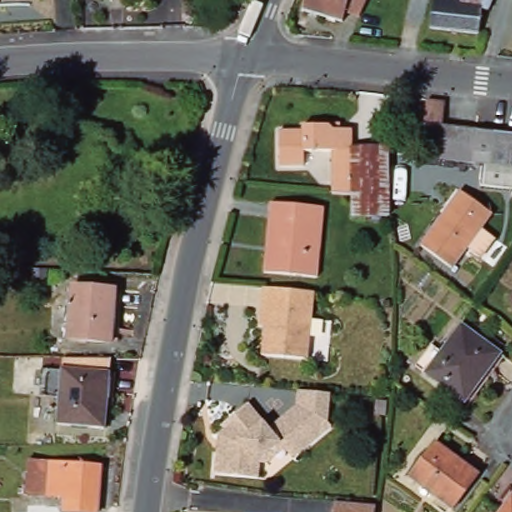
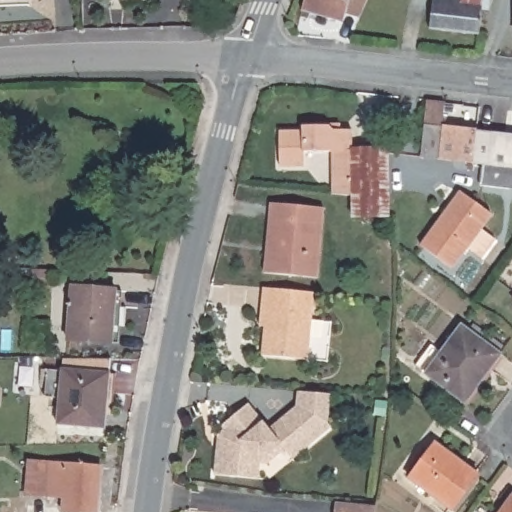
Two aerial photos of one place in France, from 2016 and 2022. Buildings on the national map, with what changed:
unchanged [(115,0),(138,0),(115,1),(115,0)]
unchanged [(307,10),(310,0),(352,0),(350,9),(347,19),(307,10)]
unchanged [(350,9),(352,0),(366,0),(360,11),(350,9)]
unchanged [(492,0),(488,9),(482,7),(480,32),(430,26),(433,0),(492,0)]
unchanged [(332,150),(303,150),(303,165),(280,165),(280,130),(302,130),(302,125),(326,124),(332,126),(332,129),(351,127),(351,146),(352,192),(349,191),(333,193),(332,190),(332,150)]
unchanged [(475,163),(458,160),(440,157),(423,156),(427,125),(443,128),(462,130),(478,132),(495,135),(512,136),(512,190),(481,187),(483,165),(475,163)]
unchanged [(351,146),(388,146),(389,212),(352,213),(349,213),(349,191),(352,192),(351,146)]
unchanged [(491,215),(452,268),(423,248),(461,193),(491,215)]
unchanged [(269,199),(320,206),(313,275),(262,270),(263,249),(265,233),(269,199)]
unchanged [(67,336),(71,284),(117,286),(113,340),(67,336)]
unchanged [(310,364),(265,359),(267,327),(260,328),(263,307),(265,284),(316,290),(310,364)]
unchanged [(500,355),(489,370),(485,367),(460,402),(424,376),(460,326),(500,355)]
unchanged [(106,425),(59,421),(60,394),(45,392),(47,365),(110,369),(106,425)]
unchanged [(255,478),(211,474),(214,448),(215,434),(221,428),(219,425),(245,402),(266,428),(293,405),(295,390),(325,393),(327,393),(325,422),(328,426),(303,447),(290,458),(281,448),(264,464),(257,463),(255,478)]
unchanged [(479,470),(453,507),(409,475),(435,438),(479,470)]
unchanged [(64,507),(64,493),(26,490),(28,456),(102,463),(100,510),(64,507)]
unchanged [(512,498),(512,512),(502,512),(512,498)]
unchanged [(335,502),(376,506),(375,512),(334,512),(335,502)]

